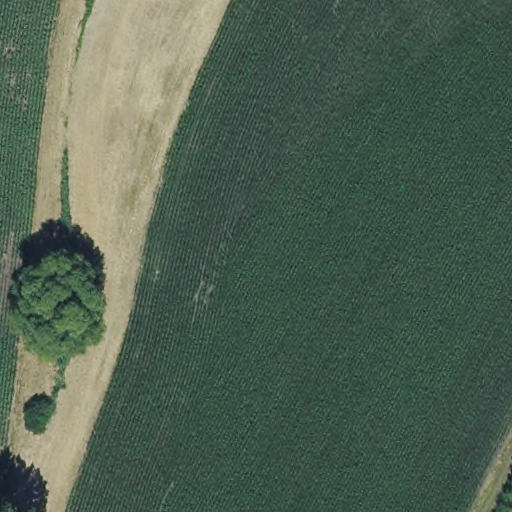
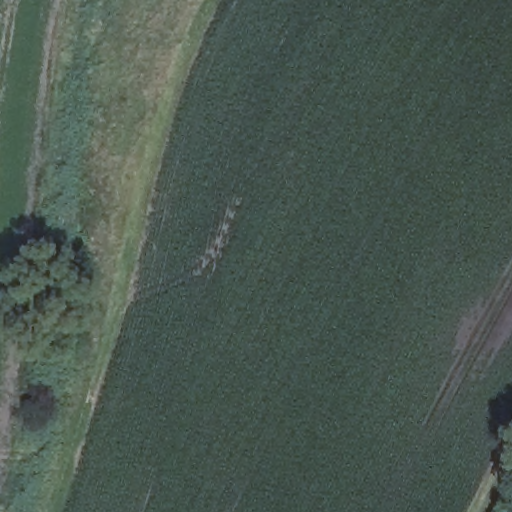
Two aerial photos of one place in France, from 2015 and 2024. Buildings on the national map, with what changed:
[]

